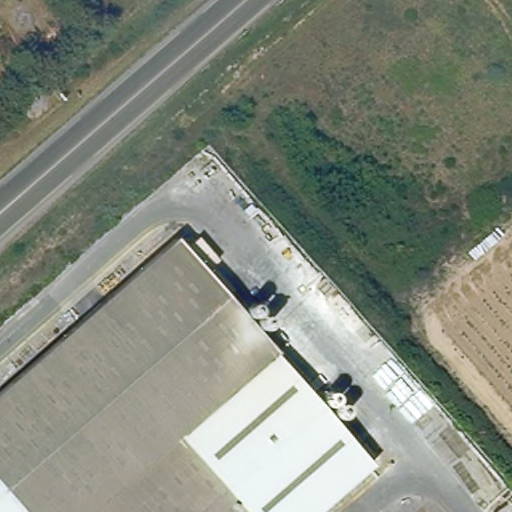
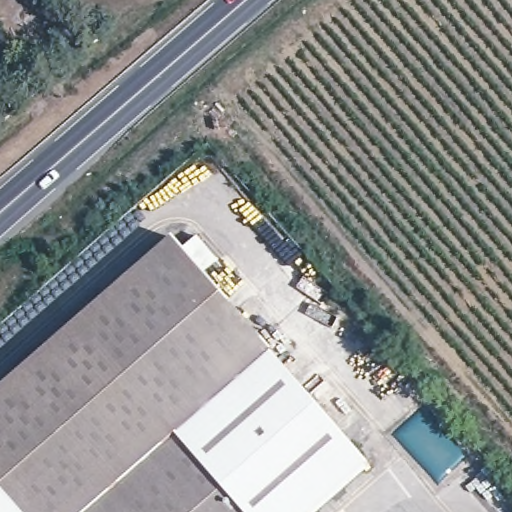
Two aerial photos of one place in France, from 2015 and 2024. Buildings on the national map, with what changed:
unchanged [(315,512),(0,512),(0,395),(177,241),(370,464),(315,512)]

